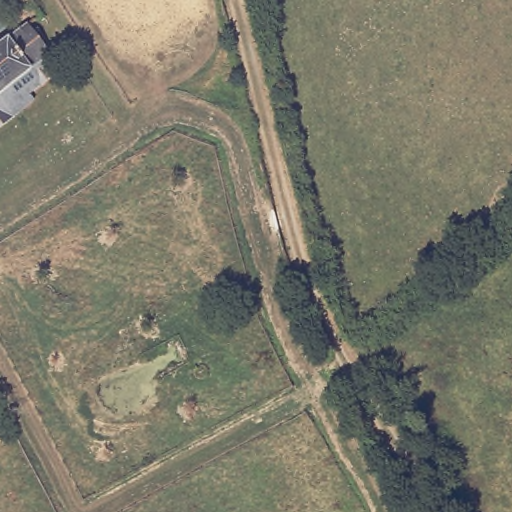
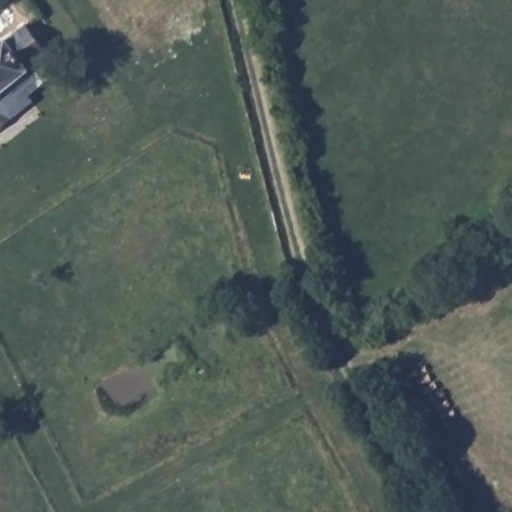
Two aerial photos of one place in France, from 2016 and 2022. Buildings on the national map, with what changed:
unchanged [(48,54),(0,93),(0,42),(25,22),(48,54)]

